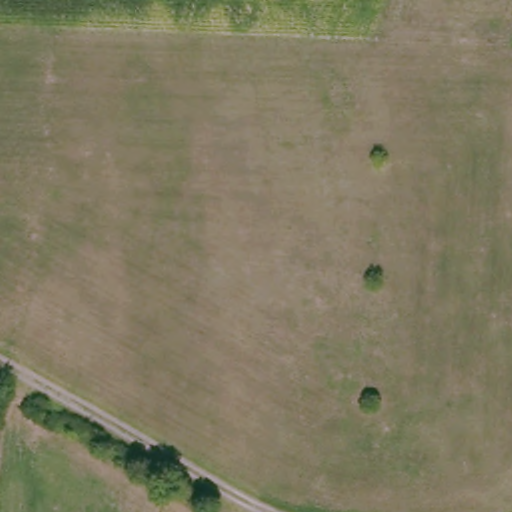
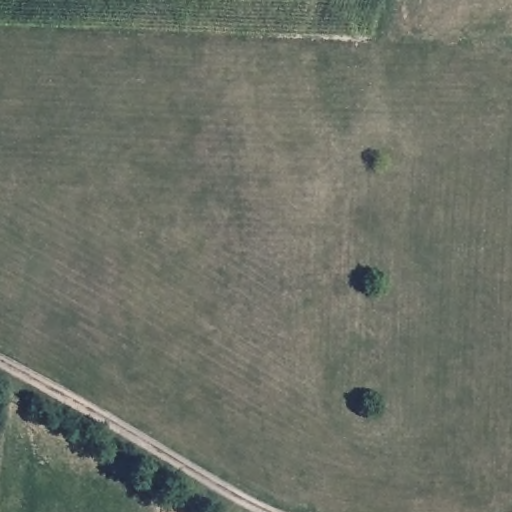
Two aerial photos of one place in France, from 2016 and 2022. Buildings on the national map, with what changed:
[]

